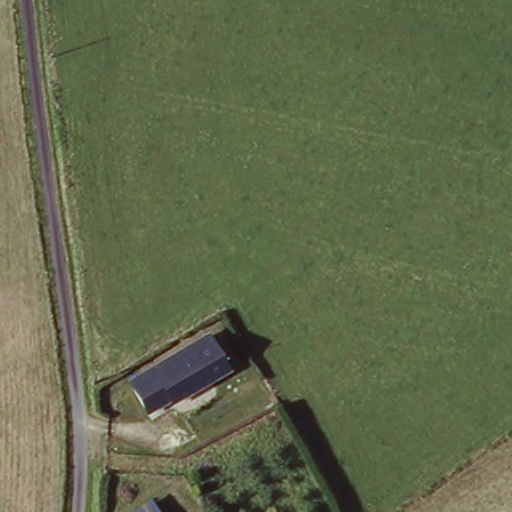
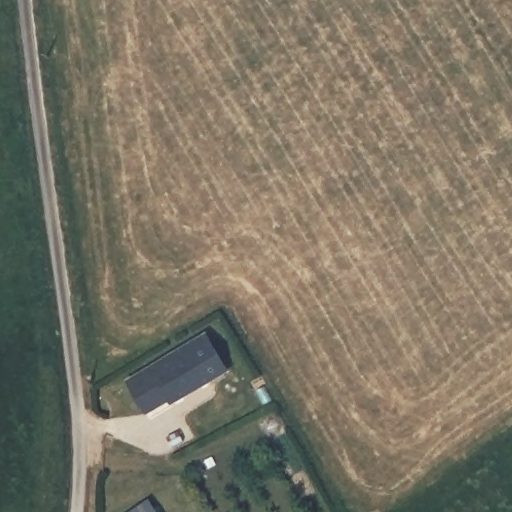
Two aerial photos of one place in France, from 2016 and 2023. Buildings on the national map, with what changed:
unchanged [(213,338),(232,372),(175,404),(173,400),(155,410),(138,380),(156,370),(213,338)]
unchanged [(136,512),(151,504),(156,512),(136,512)]

